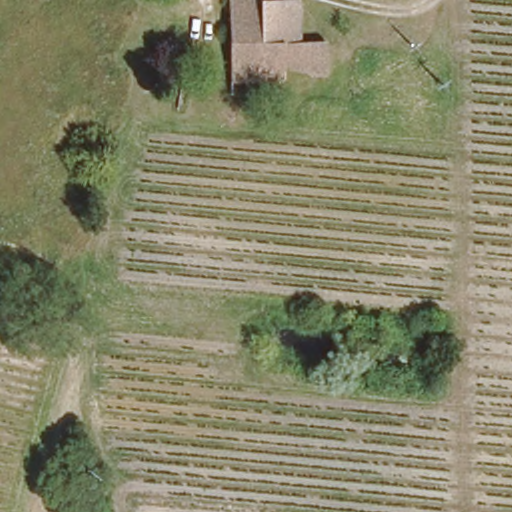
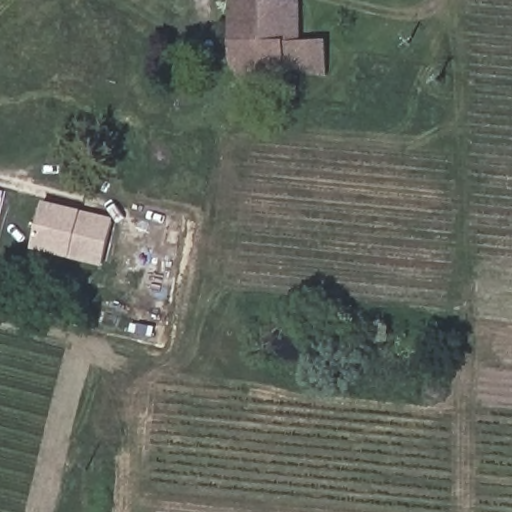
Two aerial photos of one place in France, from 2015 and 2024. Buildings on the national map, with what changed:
unchanged [(233,0),(270,0),(270,2),(305,2),(302,37),(331,37),(322,67),(273,66),(273,95),(249,95),(215,94),(221,65),(233,0)]
new [(111,222),(101,263),(31,247),(41,206),(111,222)]

